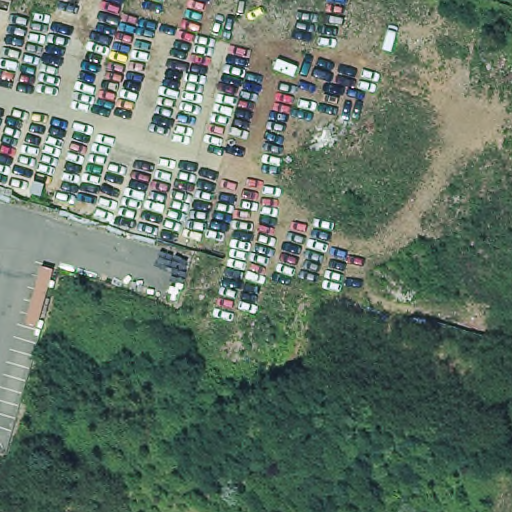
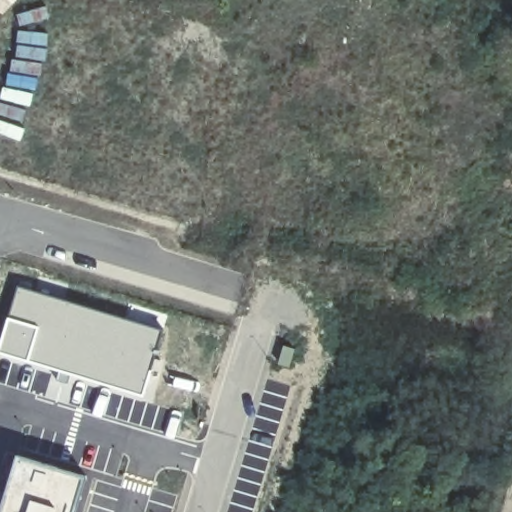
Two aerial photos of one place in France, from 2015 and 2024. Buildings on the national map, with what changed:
new [(17,284),(162,328),(142,395),(0,354),(0,336),(17,284)]
new [(87,476),(77,512),(0,512),(0,505),(16,452),(87,476)]

